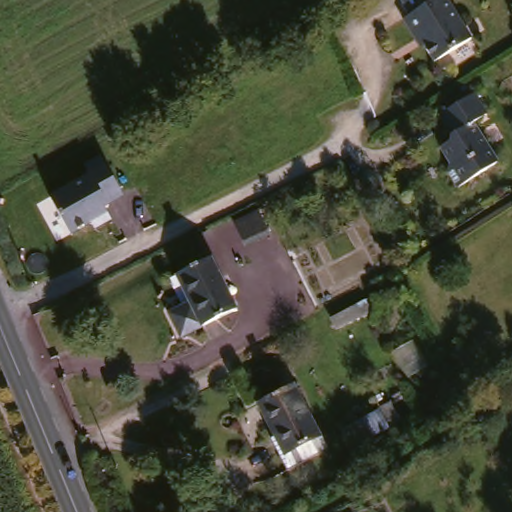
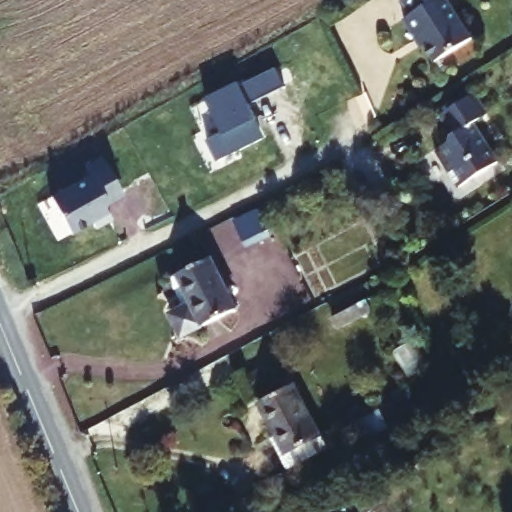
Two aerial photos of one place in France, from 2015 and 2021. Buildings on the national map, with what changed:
unchanged [(473,40),(436,63),(420,39),(418,41),(405,21),(412,17),(402,1),(405,0),(450,0),(473,40)]
new [(261,139),(216,162),(206,142),(222,134),(205,99),(237,82),(239,85),(275,68),(285,86),(249,104),(255,118),(265,137),(261,139)]
unchanged [(501,158),(461,183),(450,167),(453,158),(443,142),(452,136),(456,129),(443,109),(477,88),(490,109),(476,118),(501,158)]
unchanged [(49,193),(89,173),(84,163),(100,155),(118,190),(103,197),(103,199),(102,205),(108,218),(92,226),(89,220),(68,230),(49,193)]
unchanged [(268,228),(245,240),(235,220),(258,208),(268,228)]
unchanged [(238,304),(205,321),(204,320),(183,331),(172,309),(193,299),(177,269),(212,253),(238,304)]
unchanged [(353,299),(361,315),(337,328),(329,312),(353,299)]
unchanged [(314,423),(319,432),(309,438),(277,454),(270,439),(254,408),(259,406),(249,387),(275,374),(270,365),(280,360),(284,369),(311,421),(312,423),(314,423)]
unchanged [(379,410),(388,428),(353,447),(344,429),(379,410)]

